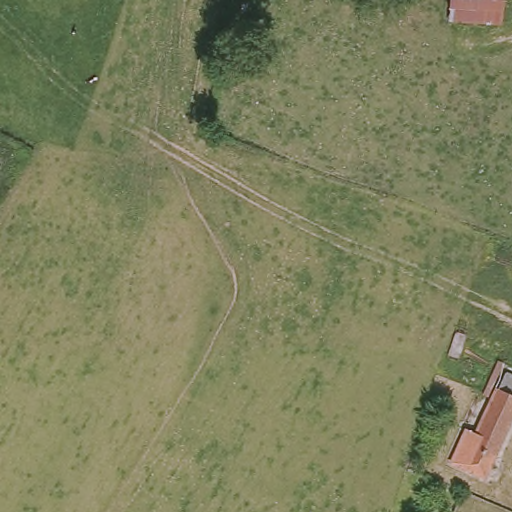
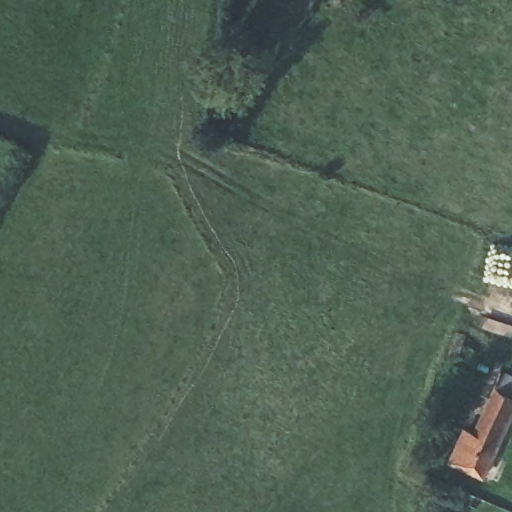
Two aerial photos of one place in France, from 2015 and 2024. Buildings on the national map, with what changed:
demolished [(500,31),(446,22),(449,0),(505,0),(500,31)]
unchanged [(440,475),(458,443),(467,447),(485,411),(502,377),(507,367),(512,371),(512,421),(477,490),(440,475)]

